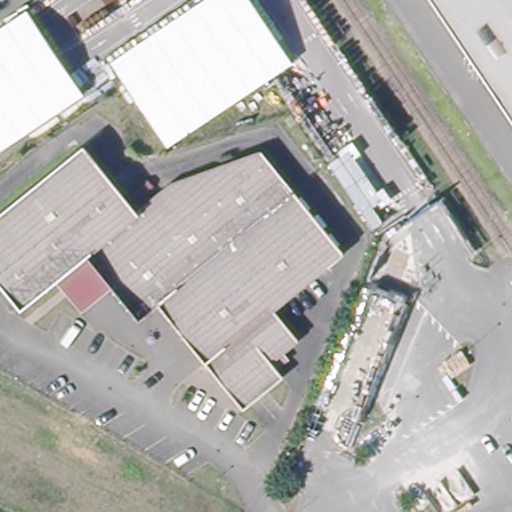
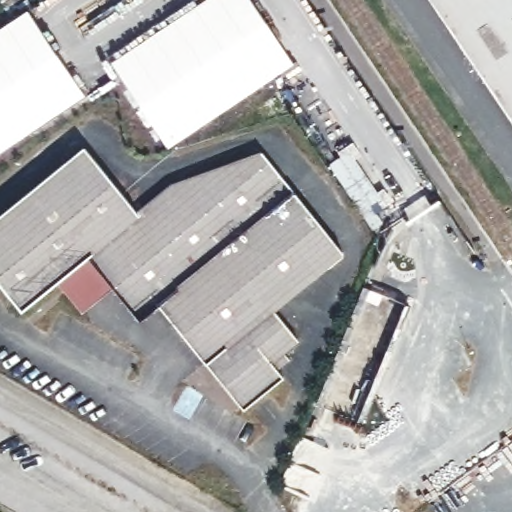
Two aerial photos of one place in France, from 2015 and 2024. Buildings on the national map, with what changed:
unchanged [(109,59),(198,0),(255,0),(296,63),(171,142),(121,77),(109,59)]
unchanged [(512,121),(431,0),(512,0),(512,121)]
unchanged [(82,95),(0,150),(0,28),(27,10),(28,14),(82,95)]
unchanged [(85,255),(55,280),(20,308),(0,284),(0,213),(85,144),(138,207),(170,182),(259,150),(337,255),(270,311),(294,343),(282,354),(287,361),(274,371),(281,380),(242,411),(158,306),(137,322),(111,287),(85,255)]
unchanged [(80,312),(55,280),(85,255),(111,287),(80,312)]

